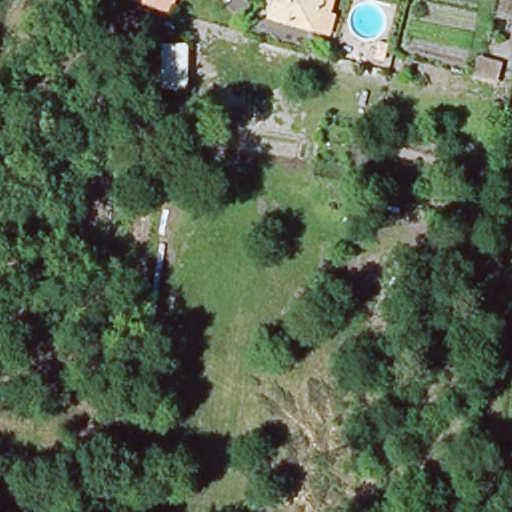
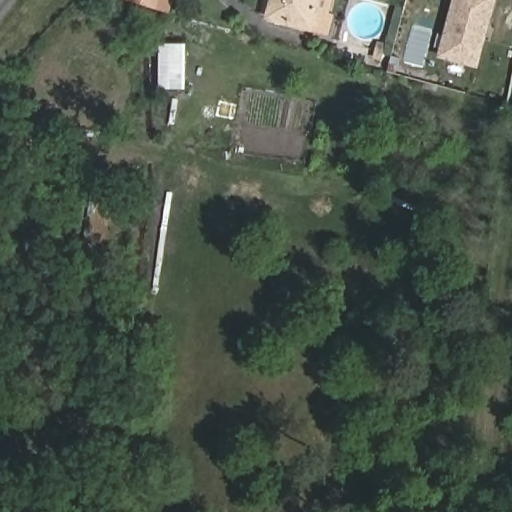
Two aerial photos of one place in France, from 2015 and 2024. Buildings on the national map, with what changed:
unchanged [(130,0),(175,0),(171,14),(130,0)]
unchanged [(331,17),(327,33),(268,16),(273,0),(330,0),(327,15),(331,17)]
new [(439,56),(454,0),(494,0),(476,66),(439,56)]
unchanged [(187,91),(161,91),(161,44),(187,43),(187,91)]
demolished [(501,61),(493,85),(472,78),(479,55),(501,61)]

